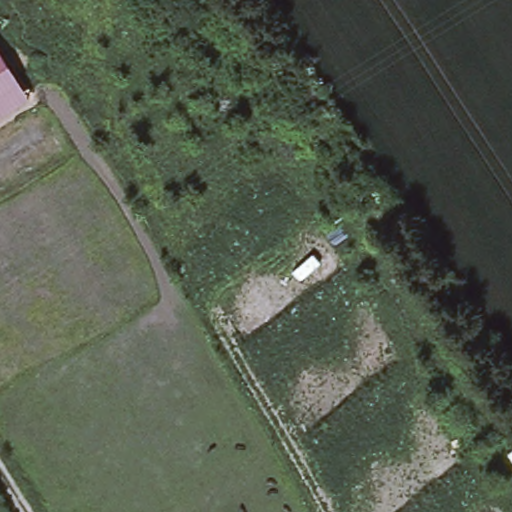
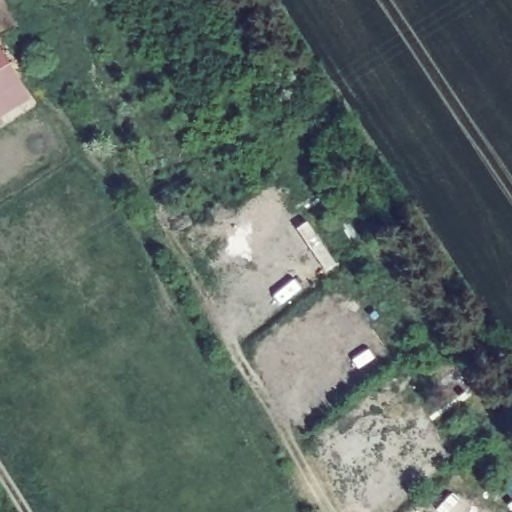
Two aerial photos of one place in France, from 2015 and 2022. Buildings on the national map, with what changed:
unchanged [(0,113),(0,44),(30,96),(0,113)]

